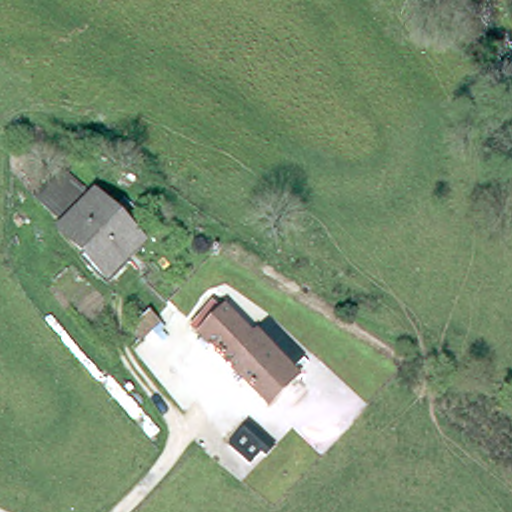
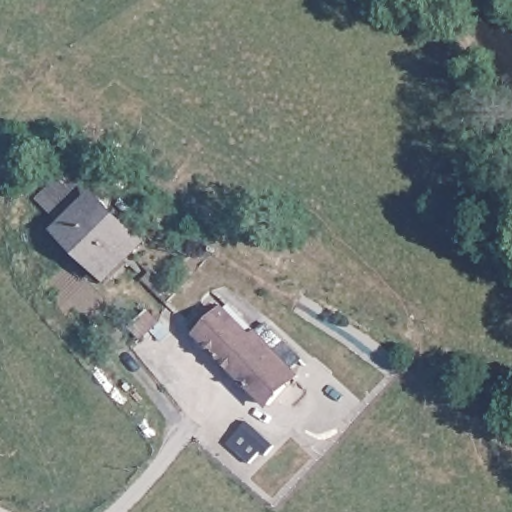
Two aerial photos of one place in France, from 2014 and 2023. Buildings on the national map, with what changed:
unchanged [(146,242),(102,283),(58,235),(96,197),(102,199),(146,242)]
unchanged [(195,346),(201,340),(190,329),(211,309),(223,320),(226,317),(256,346),(234,372),(209,348),(203,354),(195,346)]
unchanged [(159,315),(166,324),(158,330),(147,340),(140,331),(150,323),(159,315)]
unchanged [(270,407),(234,372),(256,346),(260,341),(262,339),(299,374),(297,376),(270,407)]
unchanged [(238,433),(246,423),(273,444),(264,456),(259,451),(248,464),(227,445),(238,433)]

